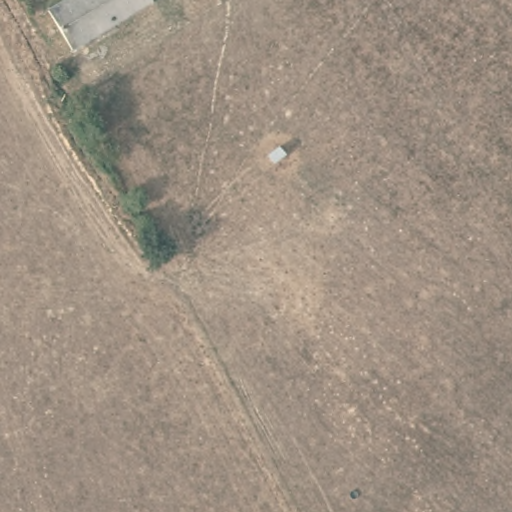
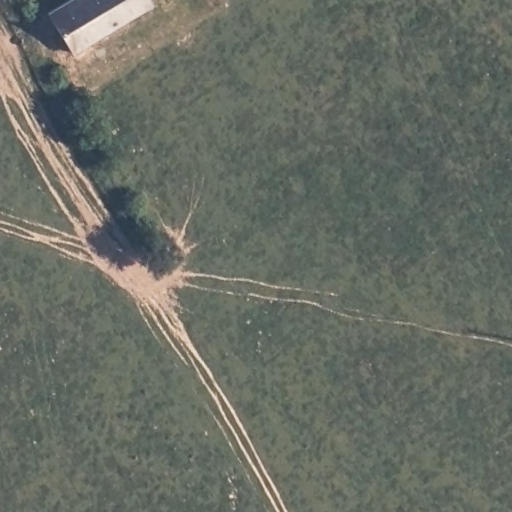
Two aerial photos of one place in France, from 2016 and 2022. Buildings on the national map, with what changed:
unchanged [(74,52),(51,15),(74,0),(152,0),(154,3),(74,52)]

